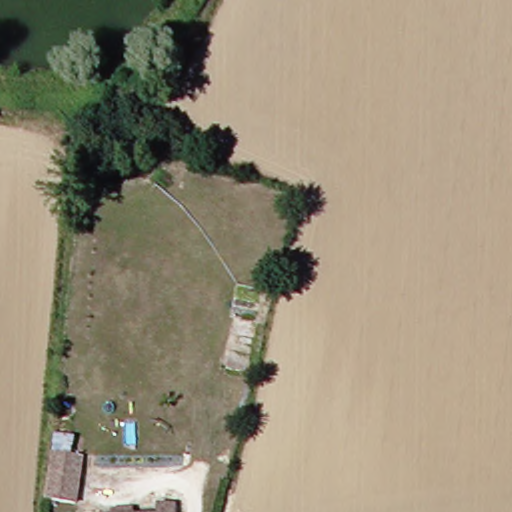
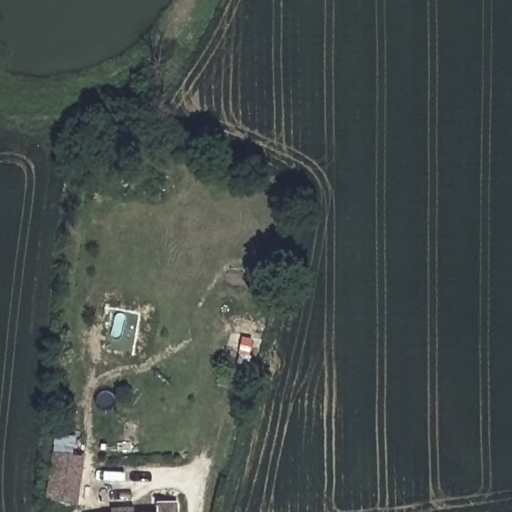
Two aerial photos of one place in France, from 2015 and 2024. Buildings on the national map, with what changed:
unchanged [(76,445),(71,492),(48,490),(53,442),(76,445)]
unchanged [(151,506),(168,505),(168,512),(151,512),(151,506)]

